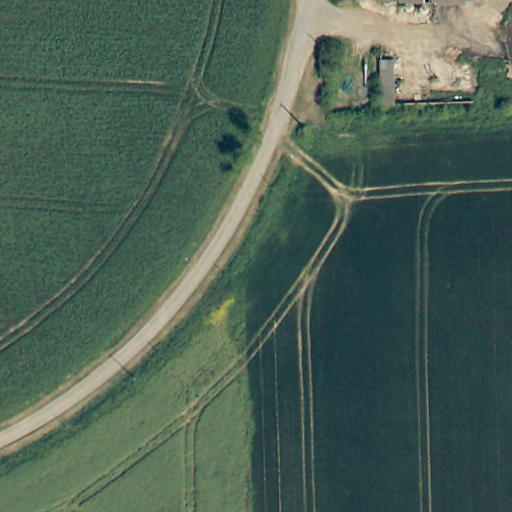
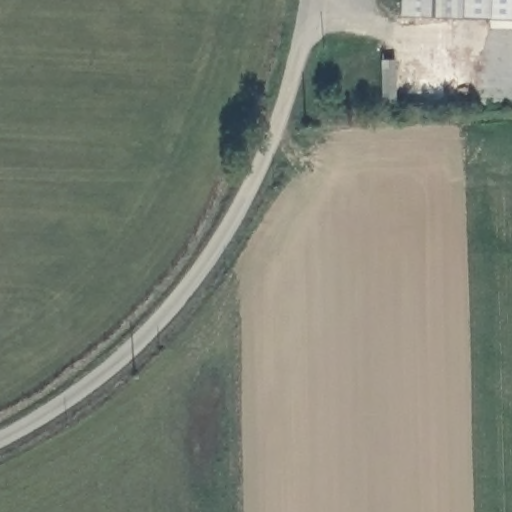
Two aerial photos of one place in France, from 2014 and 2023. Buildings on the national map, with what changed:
new [(399,16),(399,0),(512,0),(512,21),(399,16)]
unchanged [(394,105),(383,105),(381,62),(393,62),(394,105)]

